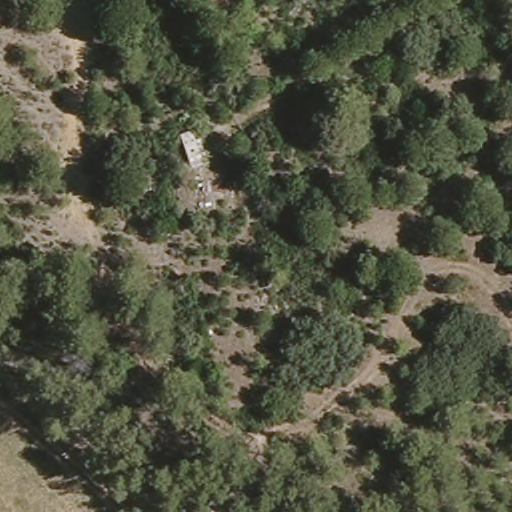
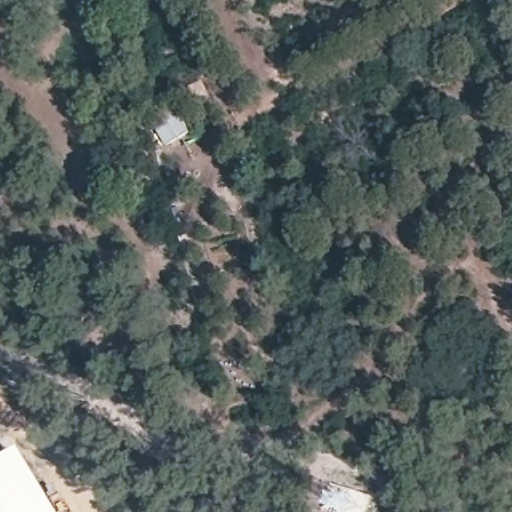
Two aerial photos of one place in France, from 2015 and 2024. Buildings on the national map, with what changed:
unchanged [(173,97),(191,131),(167,146),(147,112),(173,97)]
demolished [(193,131),(202,163),(190,169),(179,134),(193,131)]
new [(14,446),(53,512),(0,512),(0,454),(14,446)]

